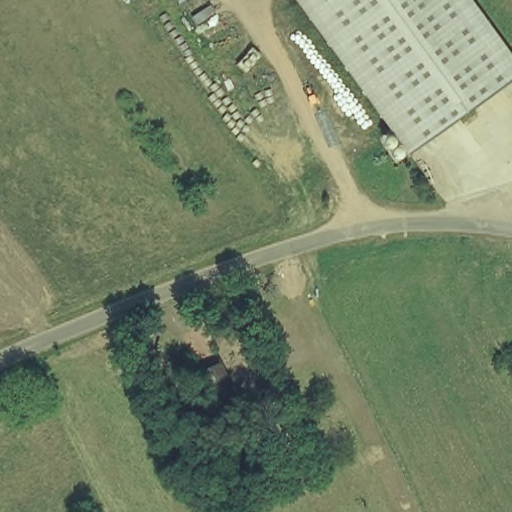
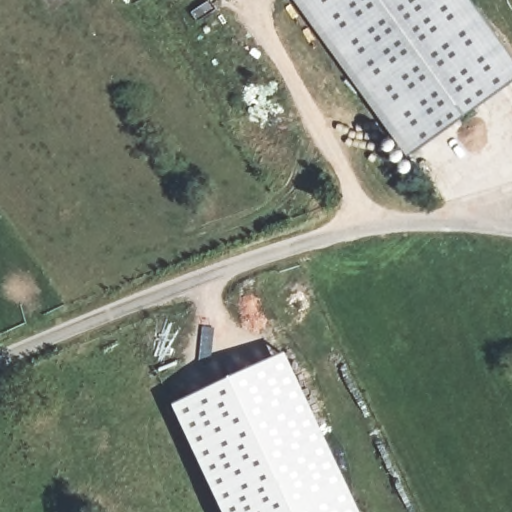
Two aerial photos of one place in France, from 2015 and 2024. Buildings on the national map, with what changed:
unchanged [(512,80),(410,154),(298,0),(471,0),(512,56),(512,80)]
new [(359,512),(219,512),(170,406),(283,352),(359,512)]
demolished [(218,408),(200,370),(227,357),(245,398),(218,408)]

